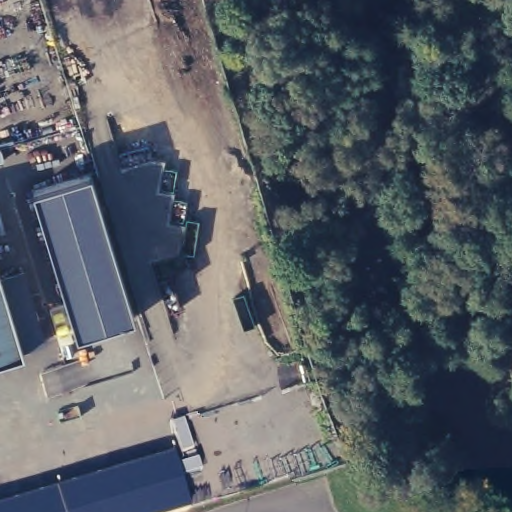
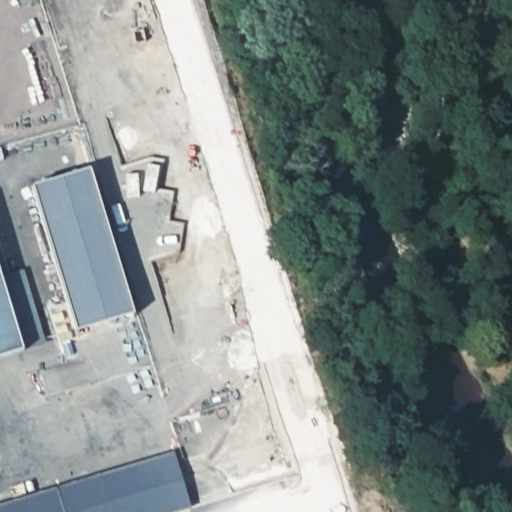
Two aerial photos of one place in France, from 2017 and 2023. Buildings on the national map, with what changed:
unchanged [(90,173),(134,317),(77,335),(32,190),(90,173)]
unchanged [(32,263),(49,339),(20,346),(27,364),(0,372),(0,272),(32,263)]
unchanged [(162,512),(0,512),(0,503),(174,450),(190,504),(162,512)]

